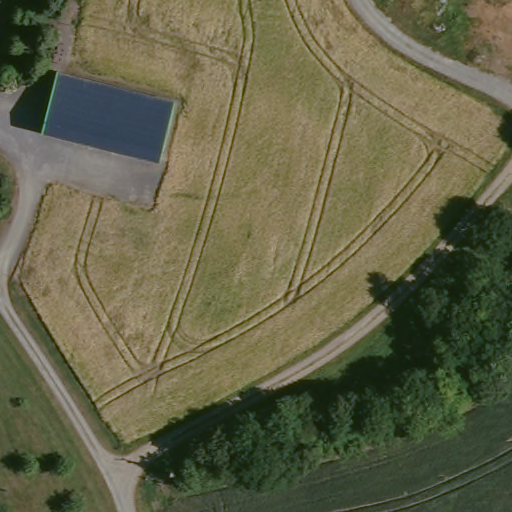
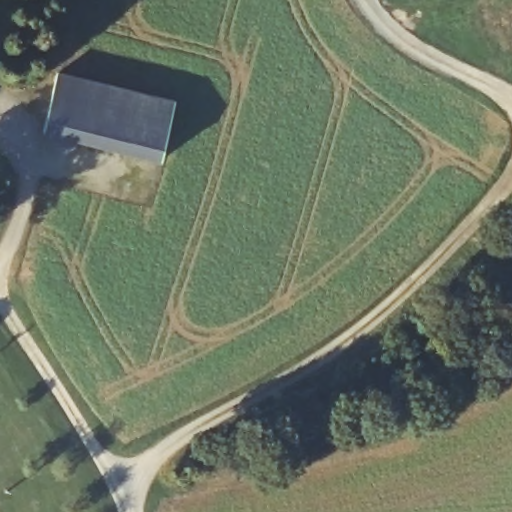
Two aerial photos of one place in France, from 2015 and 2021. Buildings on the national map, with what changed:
unchanged [(174,101),(161,161),(42,134),(55,75),(174,101)]

